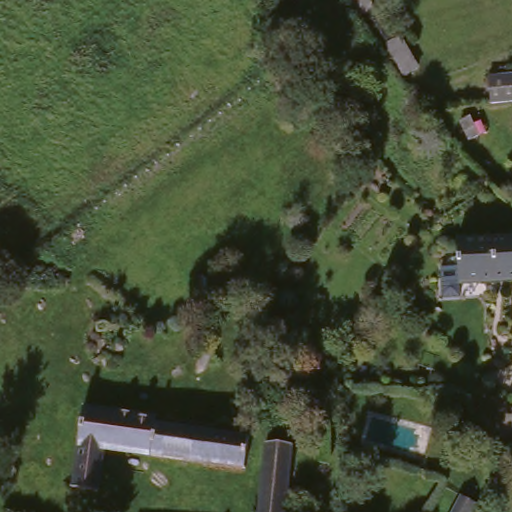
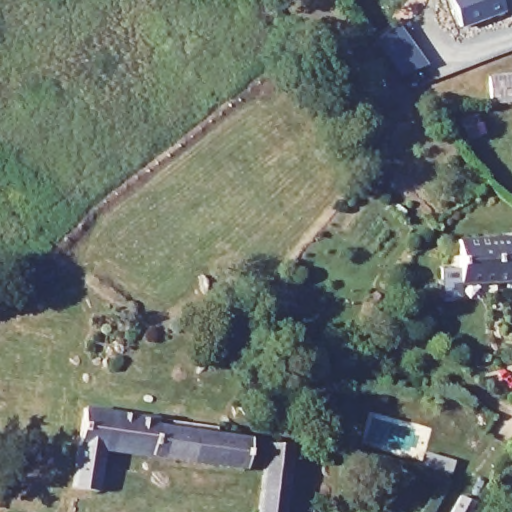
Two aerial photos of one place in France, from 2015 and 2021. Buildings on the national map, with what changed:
unchanged [(288,7),(284,0),(299,0),(288,7)]
unchanged [(358,1),(343,11),(336,0),(358,0),(358,1)]
new [(503,7),(459,25),(450,0),(500,0),(503,7)]
unchanged [(414,81),(400,88),(384,56),(399,50),(414,81)]
unchanged [(512,78),(512,106),(486,109),(483,81),(510,79),(512,78)]
unchanged [(468,145),(460,150),(451,132),(459,127),(468,145)]
unchanged [(512,244),(512,286),(504,286),(451,289),(448,247),(512,244)]
unchanged [(102,422),(148,432),(146,453),(145,459),(145,460),(103,454),(96,487),(76,485),(85,420),(102,422)]
unchanged [(146,453),(148,432),(174,435),(203,438),(203,436),(221,438),(221,441),(256,445),(256,446),(249,475),(145,460),(145,459),(146,453)]
unchanged [(294,457),(288,512),(262,512),(268,454),(294,457)]
unchanged [(470,512),(457,512),(461,506),(470,512)]

